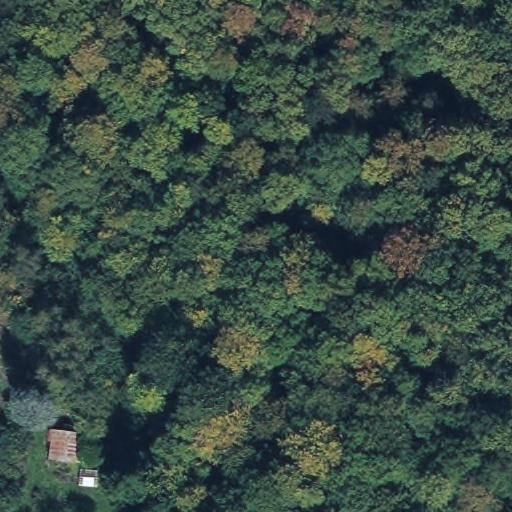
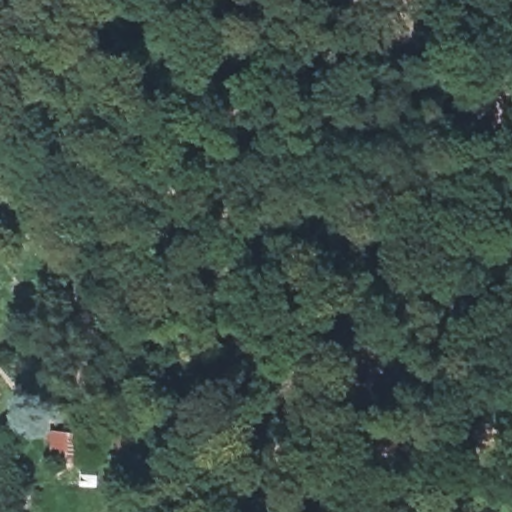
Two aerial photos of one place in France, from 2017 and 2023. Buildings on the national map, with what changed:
unchanged [(95,420),(90,451),(43,454),(42,414),(95,420)]
unchanged [(117,427),(141,426),(145,477),(116,466),(117,427)]

